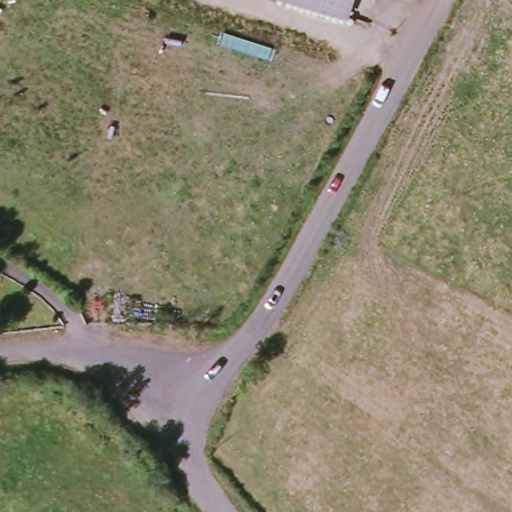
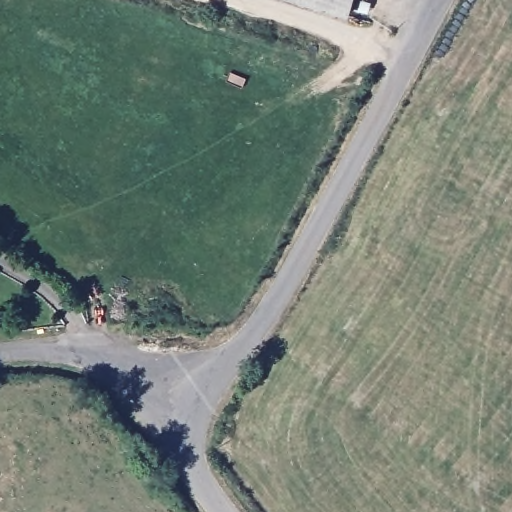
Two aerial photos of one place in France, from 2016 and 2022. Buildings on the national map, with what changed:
unchanged [(350,16),(298,0),(354,0),(350,16)]

